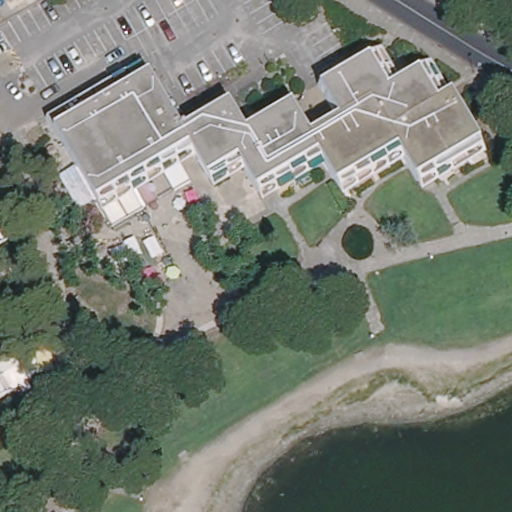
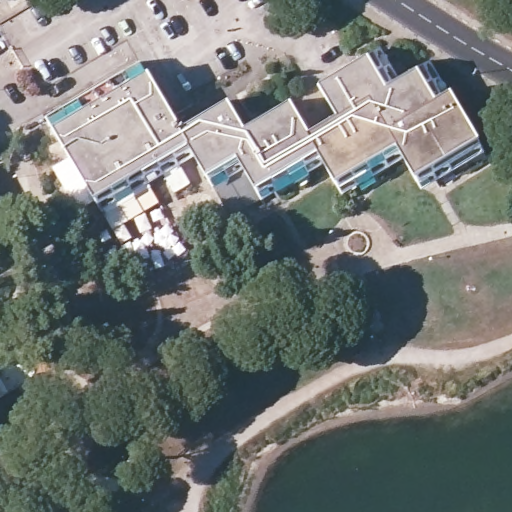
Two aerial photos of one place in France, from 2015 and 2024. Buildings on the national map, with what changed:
unchanged [(249,184),(236,162),(205,180),(200,171),(187,149),(182,140),(91,194),(72,160),(40,106),(134,55),(171,118),(220,92),(236,118),(281,92),(298,122),(314,114),(329,105),(312,75),(344,56),(365,45),(373,40),(390,70),(413,57),(421,53),(444,92),(471,138),(476,147),(412,183),(407,174),(394,153),(334,189),(329,180),(316,156),(254,193),(249,184)]
unchanged [(187,149),(96,202),(91,194),(182,140),(187,149)]
unchanged [(0,389),(0,386),(1,388),(0,389)]

